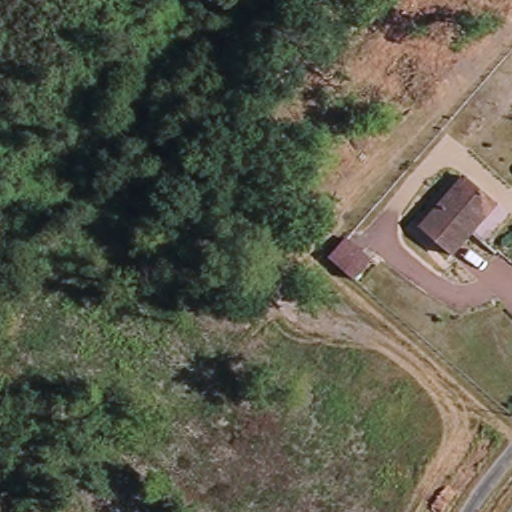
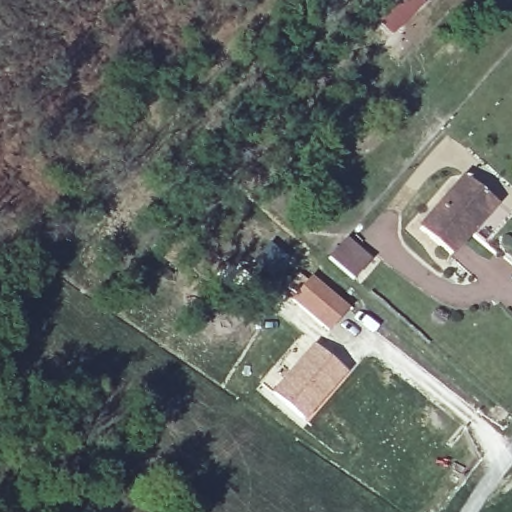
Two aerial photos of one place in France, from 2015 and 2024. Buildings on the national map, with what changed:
unchanged [(498,205),(451,256),(420,230),(468,179),(498,205)]
unchanged [(370,258),(351,274),(330,255),(345,236),(370,258)]
new [(327,331),(290,298),(310,274),(347,307),(327,331)]
new [(305,420),(271,391),(312,344),(346,373),(305,420)]

